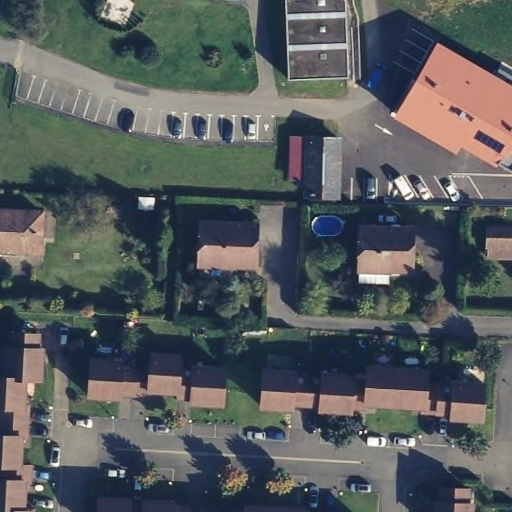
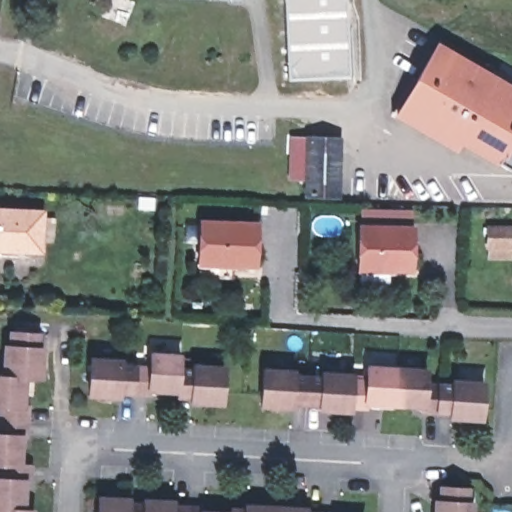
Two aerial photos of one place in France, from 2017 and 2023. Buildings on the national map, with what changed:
unchanged [(343,66),(283,70),(280,0),(341,0),(343,66)]
unchanged [(438,42),(495,76),(500,69),(512,75),(512,172),(495,163),(461,144),(455,152),(394,116),(438,42)]
unchanged [(328,196),(297,195),(297,180),(282,179),(283,137),(298,137),(330,139),(328,196)]
unchanged [(0,211),(47,213),(45,252),(28,251),(27,257),(22,257),(22,251),(0,250),(0,211)]
unchanged [(190,263),(192,221),(248,224),(246,266),(190,263)]
unchanged [(413,223),(412,265),(389,265),(389,277),(360,276),(360,221),(413,223)]
unchanged [(485,227),(512,228),(512,260),(485,260),(485,252),(485,227)]
unchanged [(39,335),(38,348),(43,348),(42,378),(26,378),(5,377),(7,346),(12,346),(12,333),(39,335)]
unchanged [(181,350),(180,365),(178,387),(150,385),(150,390),(135,389),(137,361),(150,362),(152,348),(181,350)]
unchanged [(92,354),(122,356),(122,360),(137,361),(135,389),(120,388),(120,392),(90,390),(92,354)]
unchanged [(178,391),(178,387),(180,365),(195,365),(195,360),(225,362),(222,399),(192,397),(192,392),(178,391)]
unchanged [(343,379),(358,380),(359,366),(388,368),(385,405),(357,403),(357,408),(342,407),(343,379)]
unchanged [(388,368),(418,370),(417,384),(430,385),(428,412),(413,411),(414,407),(385,405),(388,368)]
unchanged [(255,370),(285,371),(285,376),(298,377),(297,404),(283,403),(282,408),(252,406),(255,370)]
unchanged [(298,377),(313,378),(313,373),(343,375),(343,379),(342,407),(341,411),(311,410),(311,405),(297,404),(298,377)]
unchanged [(26,378),(24,406),(28,406),(27,422),(0,420),(2,406),(0,406),(0,377),(5,377),(26,378)]
unchanged [(430,385),(444,386),(445,381),(475,383),(472,420),(442,418),(442,413),(428,412),(430,385)]
unchanged [(27,437),(22,437),(20,465),(4,465),(0,464),(0,427),(0,420),(27,422),(27,437)]
unchanged [(31,466),(30,481),(25,481),(24,510),(0,508),(0,478),(3,478),(4,465),(20,465),(31,466)]
unchanged [(446,501),(447,487),(473,488),(473,503),(477,503),(477,512),(440,512),(441,501),(446,501)]
unchanged [(130,500),(130,504),(144,505),(144,512),(99,512),(100,497),(130,500)]
unchanged [(145,500),(175,501),(175,506),(188,507),(188,512),(144,512),(144,505),(145,500)]
unchanged [(246,510),(247,505),(277,507),(277,512),(232,512),(232,510),(246,510)]
unchanged [(204,508),(204,512),(188,512),(188,507),(204,508)]
unchanged [(307,512),(277,512),(277,507),(307,509),(307,512)]
unchanged [(33,511),(33,512),(0,512),(0,508),(24,510),(33,511)]

